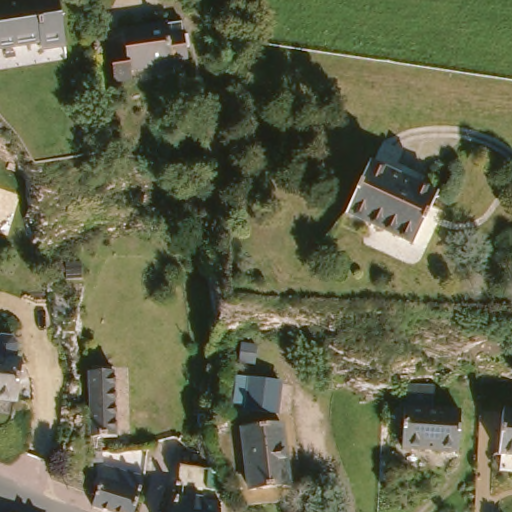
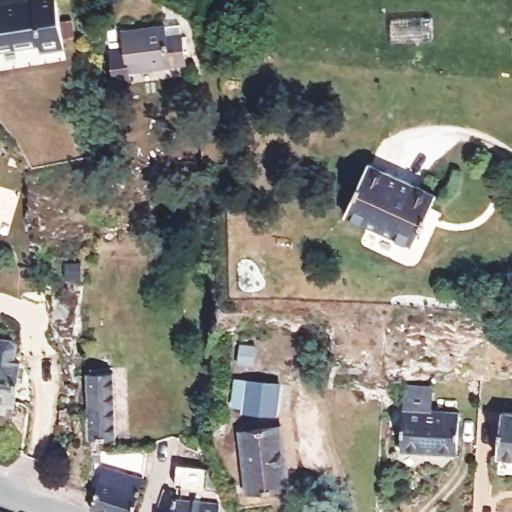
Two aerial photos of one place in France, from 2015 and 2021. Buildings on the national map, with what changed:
unchanged [(13,1),(14,6),(35,2),(35,0),(55,0),(61,45),(38,48),(37,44),(0,48),(0,3),(13,1)]
unchanged [(185,64),(130,66),(130,75),(107,76),(105,50),(120,49),(119,29),(183,26),(185,64)]
unchanged [(219,158),(200,157),(200,140),(219,140),(219,158)]
unchanged [(437,191),(412,242),(343,210),(368,159),(437,191)]
unchanged [(0,402),(0,341),(5,337),(16,339),(20,345),(19,361),(25,362),(21,405),(0,402)]
unchanged [(89,416),(88,370),(98,370),(98,352),(114,352),(115,435),(90,436),(89,416)]
unchanged [(279,414),(247,409),(249,402),(237,400),(240,378),(283,385),(279,414)]
unchanged [(457,418),(451,459),(397,451),(403,410),(405,393),(406,387),(434,391),(433,397),(430,414),(457,418)]
unchanged [(210,404),(191,404),(191,390),(209,391),(210,404)]
unchanged [(512,456),(495,455),(500,411),(512,412),(512,456)]
unchanged [(283,431),(285,491),(246,492),(245,432),(283,431)]
unchanged [(97,487),(90,485),(90,468),(105,472),(109,466),(147,479),(136,512),(105,512),(91,507),(97,487)]
unchanged [(203,491),(224,492),(223,512),(171,512),(171,504),(178,504),(179,489),(172,489),(175,469),(204,471),(203,491)]
unchanged [(4,512),(0,512),(0,510),(4,512)]

